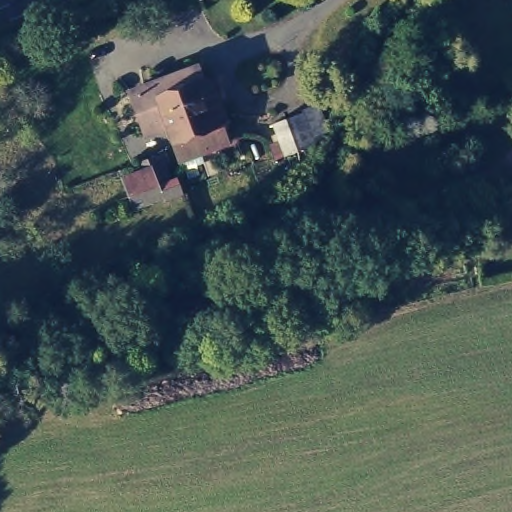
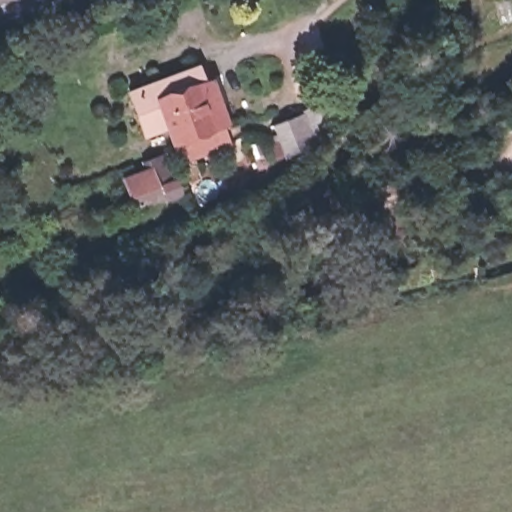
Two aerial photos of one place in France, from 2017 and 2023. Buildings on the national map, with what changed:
unchanged [(232,144),(174,166),(166,137),(144,146),(121,86),(196,59),(232,144)]
unchanged [(311,91),(329,131),(279,155),(261,119),(311,91)]
unchanged [(123,176),(151,166),(157,184),(161,194),(133,203),(129,193),(123,176)]

